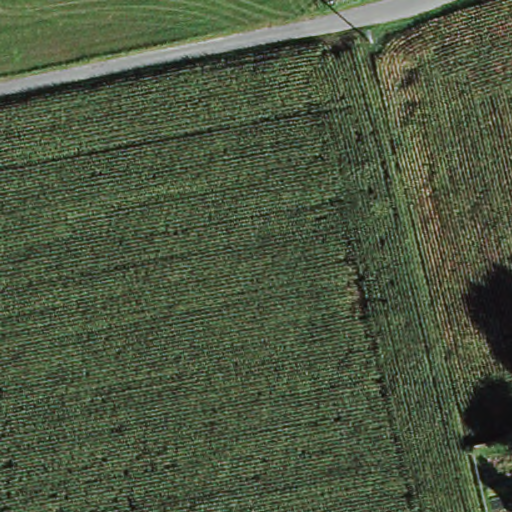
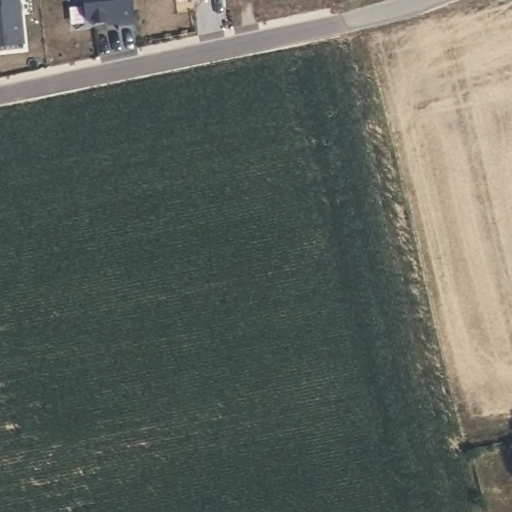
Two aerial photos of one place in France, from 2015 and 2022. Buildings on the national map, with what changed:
new [(22,46),(0,49),(0,0),(17,0),(22,46)]
new [(133,23),(116,25),(115,20),(87,23),(81,19),(79,0),(130,0),(133,23)]

